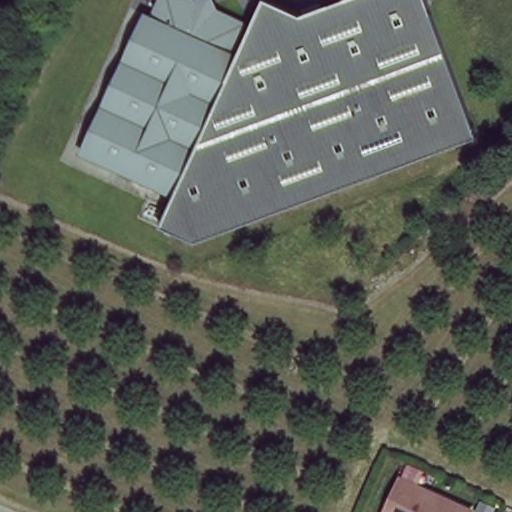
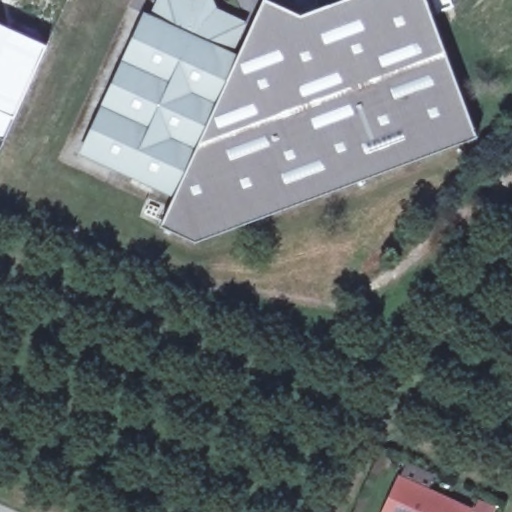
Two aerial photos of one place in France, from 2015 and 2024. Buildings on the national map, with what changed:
unchanged [(144,12),(149,0),(185,0),(202,7),(205,2),(238,16),(225,49),(232,51),(172,191),(77,147),(137,10),(144,12)]
unchanged [(232,51),(257,0),(269,0),(306,15),(348,0),(420,0),(477,144),(207,251),(157,227),(172,191),(232,51)]
new [(3,137),(0,136),(0,22),(48,44),(3,137)]
unchanged [(386,512),(400,481),(468,511),(468,512),(386,512)]

